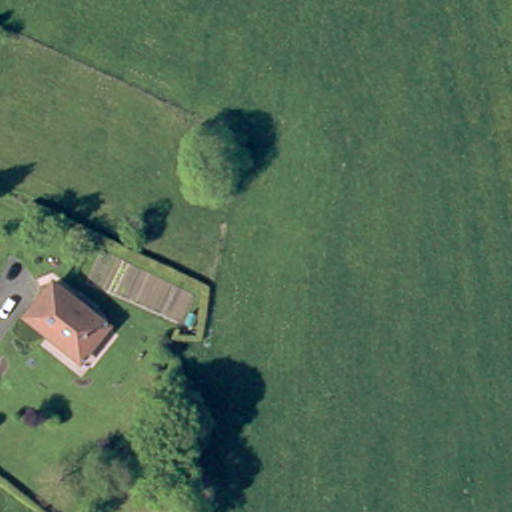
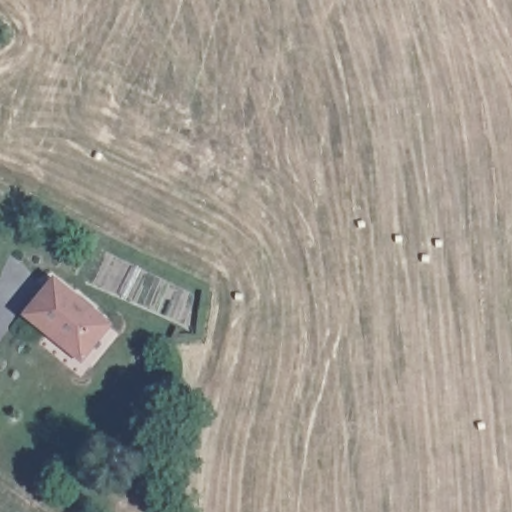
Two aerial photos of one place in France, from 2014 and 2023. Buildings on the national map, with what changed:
unchanged [(75,356),(22,311),(49,279),(102,323),(75,356)]

